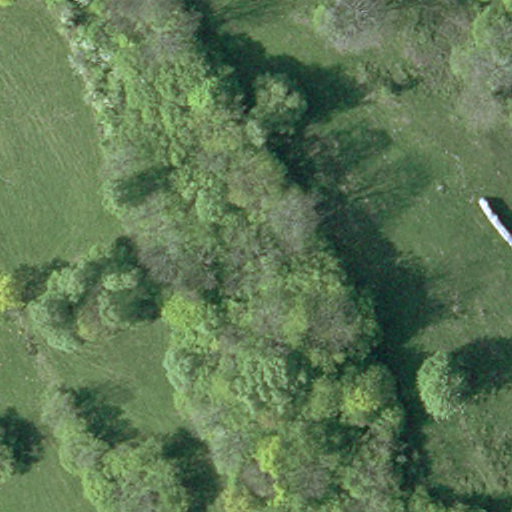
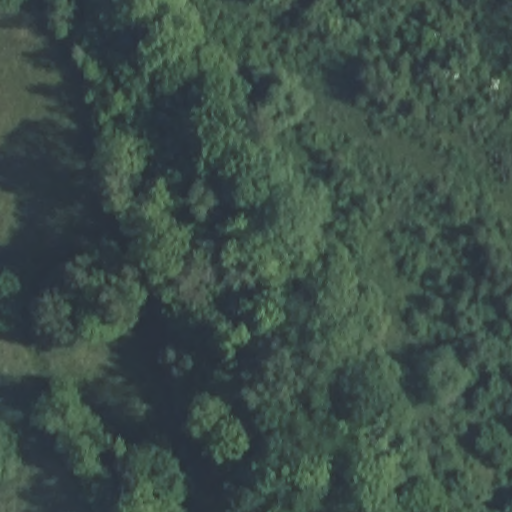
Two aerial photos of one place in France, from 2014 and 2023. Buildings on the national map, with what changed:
[]

